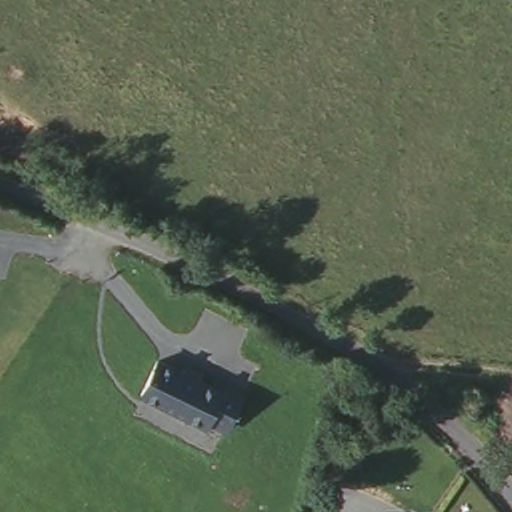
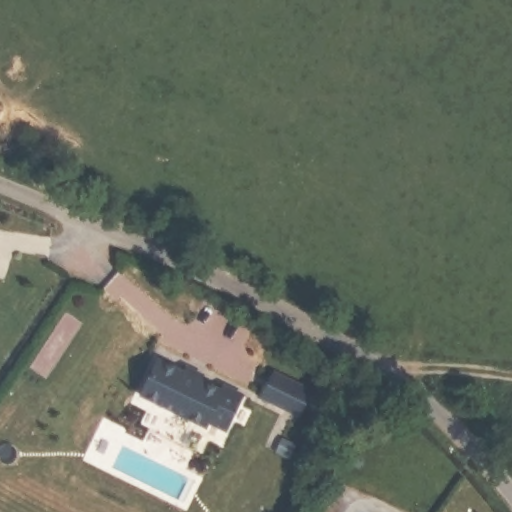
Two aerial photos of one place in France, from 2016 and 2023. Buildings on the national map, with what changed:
unchanged [(230,432),(139,395),(155,356),(245,396),(230,432)]
new [(271,368),(312,388),(298,415),(259,397),(271,368)]

